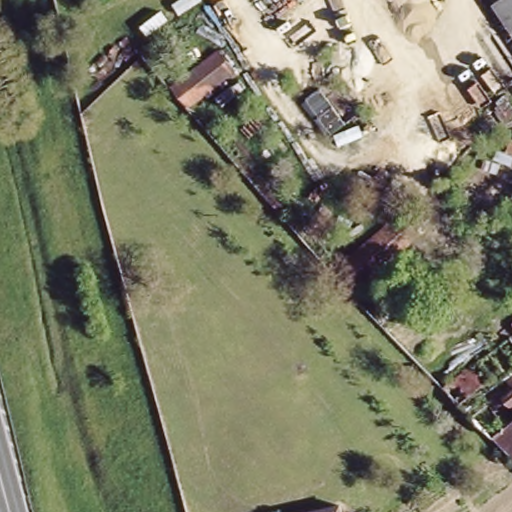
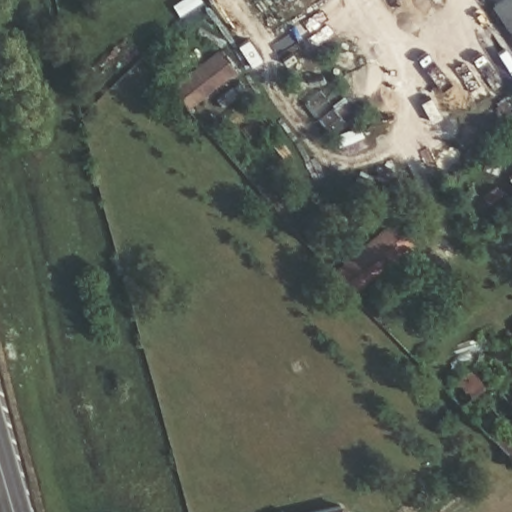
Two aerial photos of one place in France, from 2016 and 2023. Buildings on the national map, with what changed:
unchanged [(490,5),(498,0),(511,0),(512,2),(512,36),(490,5)]
unchanged [(511,0),(512,0),(512,2),(511,0)]
unchanged [(170,85),(220,47),(234,66),(185,103),(170,85)]
unchanged [(350,258),(395,222),(405,236),(410,243),(368,278),(362,271),(350,258)]
unchanged [(442,390),(474,365),(490,387),(512,373),(512,463),(442,390)]
unchanged [(343,512),(289,512),(341,501),(343,512)]

